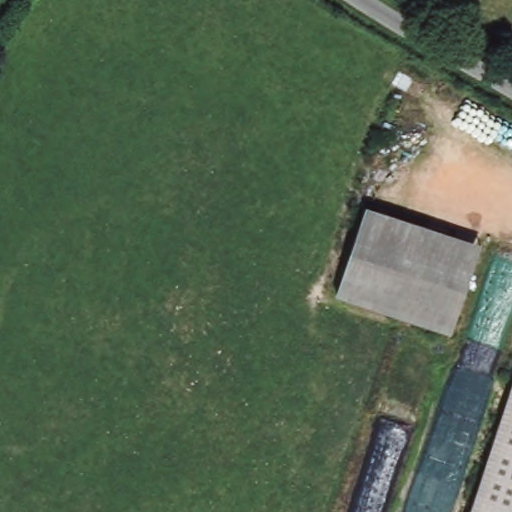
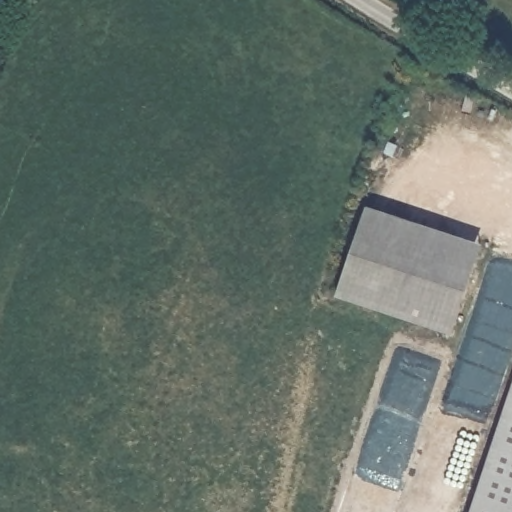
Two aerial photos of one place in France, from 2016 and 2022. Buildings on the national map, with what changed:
unchanged [(456,330),(336,291),(370,200),(483,242),(456,330)]
unchanged [(471,512),(512,390),(512,512),(471,512)]

